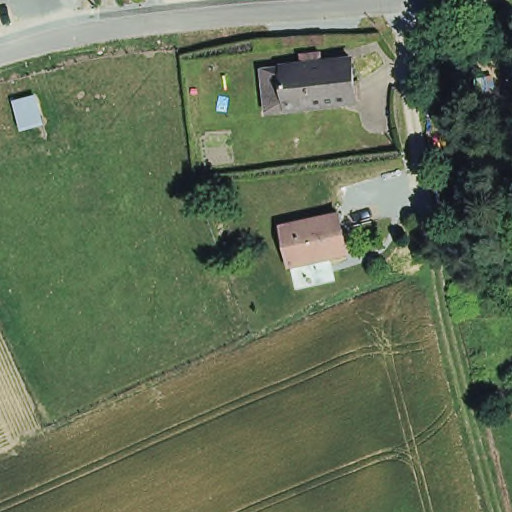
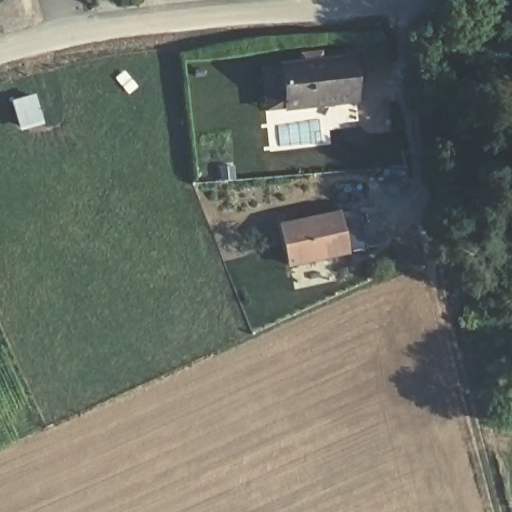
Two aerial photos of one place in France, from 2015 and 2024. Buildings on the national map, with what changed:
unchanged [(277,62),(351,55),(355,97),(281,104),(261,105),(257,64),(277,62)]
unchanged [(9,101),(37,93),(47,119),(19,130),(9,101)]
unchanged [(300,265),(290,225),(344,212),(354,252),(300,265)]

